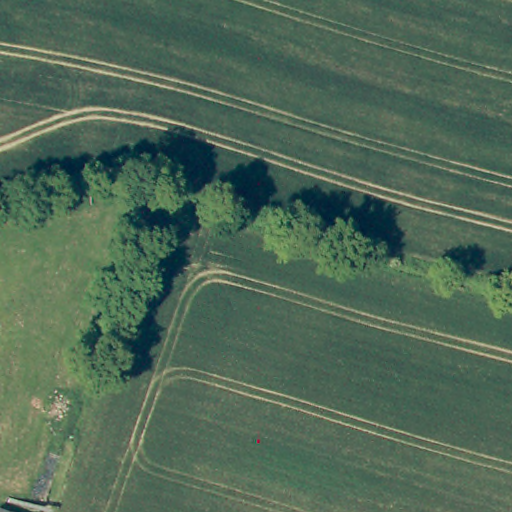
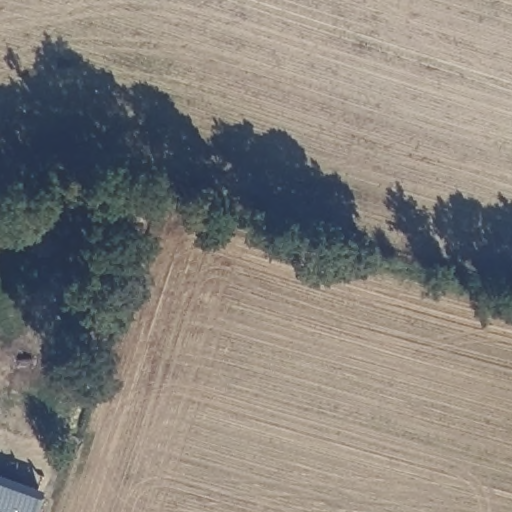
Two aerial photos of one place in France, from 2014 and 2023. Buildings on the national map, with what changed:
new [(0,512),(0,474),(47,491),(39,512),(0,512)]
demolished [(0,512),(0,510),(4,512),(0,512)]

